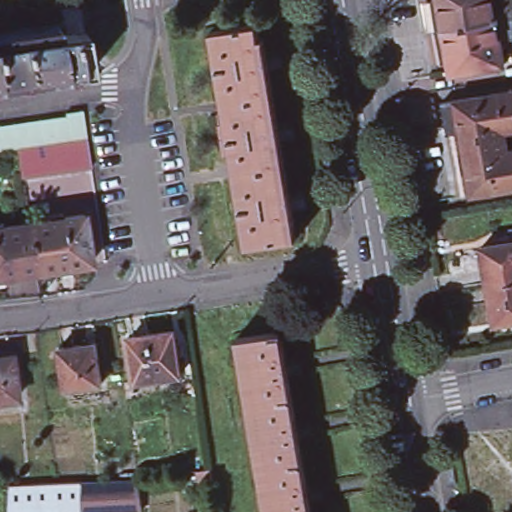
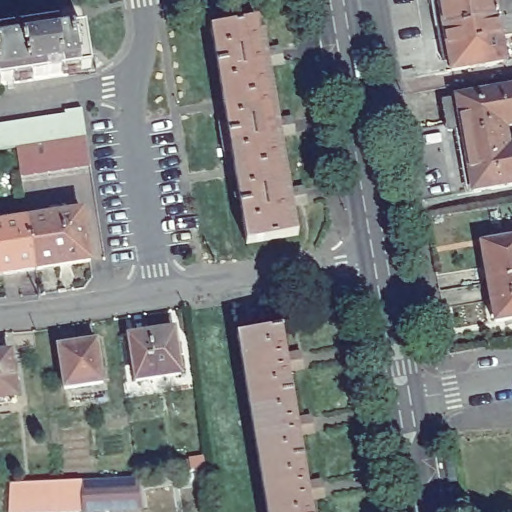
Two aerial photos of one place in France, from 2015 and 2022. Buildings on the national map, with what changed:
unchanged [(502,37),(506,62),(452,71),(450,59),(445,60),(439,27),(436,7),(441,3),(441,0),(496,0),(499,17),(512,14),(512,35),(502,37)]
unchanged [(224,102),(212,30),(258,23),(260,37),(265,36),(268,51),(274,50),(276,64),(269,65),(274,93),(224,102)]
unchanged [(74,33),(90,31),(95,70),(0,84),(0,34),(73,24),(74,33)]
unchanged [(458,99),(512,88),(512,126),(507,127),(511,147),(512,146),(512,185),(473,192),(458,99)]
unchanged [(279,122),(286,120),(289,134),(281,135),(286,164),(236,172),(232,152),(224,153),(219,123),(228,122),(224,102),(274,93),(279,122)]
unchanged [(4,148),(0,149),(0,124),(1,124),(15,122),(28,120),(40,118),(54,116),(66,115),(65,112),(83,109),(87,136),(91,165),(78,167),(63,169),(50,171),(36,173),(23,175),(18,146),(4,148)]
unchanged [(286,164),(291,192),(298,191),(300,205),(294,205),(298,236),(248,243),(236,172),(286,164)]
unchanged [(84,208),(91,258),(37,266),(30,216),(84,208)]
unchanged [(0,271),(0,220),(30,216),(37,266),(0,271)]
unchanged [(484,245),(512,239),(512,279),(490,284),(484,245)]
unchanged [(512,279),(512,318),(497,321),(497,318),(494,317),(492,305),(494,305),(490,284),(512,279)]
unchanged [(249,396),(238,333),(283,325),(287,351),(294,350),(296,363),(289,364),(293,390),(249,396)]
unchanged [(181,374),(136,381),(130,336),(175,330),(181,374)]
unchanged [(101,382),(65,388),(59,347),(95,341),(101,382)]
unchanged [(18,401),(0,404),(0,359),(11,358),(18,401)]
unchanged [(298,415),(305,414),(308,428),(300,429),(304,455),(260,462),(249,396),(293,390),(298,415)]
unchanged [(309,479),(316,478),(318,492),(311,493),(314,512),(268,512),(260,462),(304,455),(309,479)]
unchanged [(133,478),(138,509),(78,511),(78,480),(133,478)]
unchanged [(23,512),(5,512),(6,483),(53,481),(78,480),(78,511),(23,512)]

